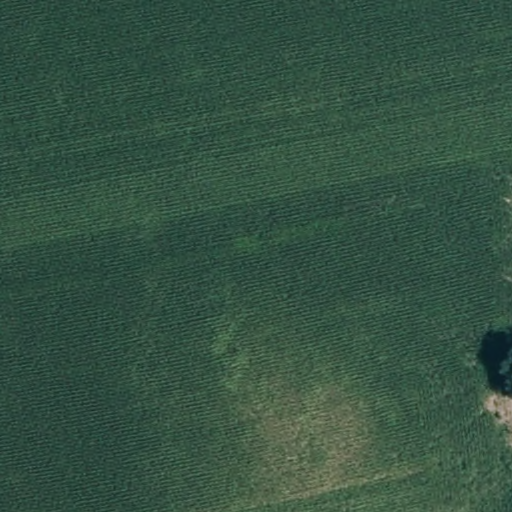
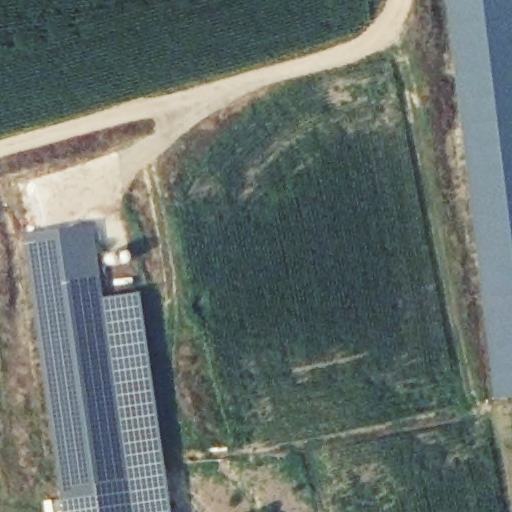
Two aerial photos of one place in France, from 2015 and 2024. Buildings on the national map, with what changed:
new [(445,0),(512,0),(512,397),(493,399),(445,0)]
new [(21,234),(92,226),(132,512),(60,512),(21,234)]
new [(102,298),(139,293),(169,512),(132,512),(102,298)]

